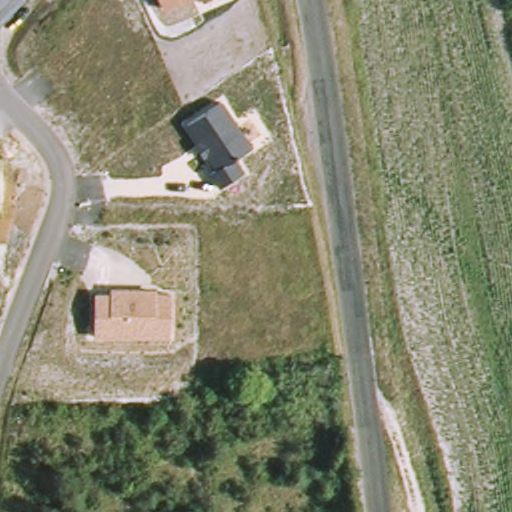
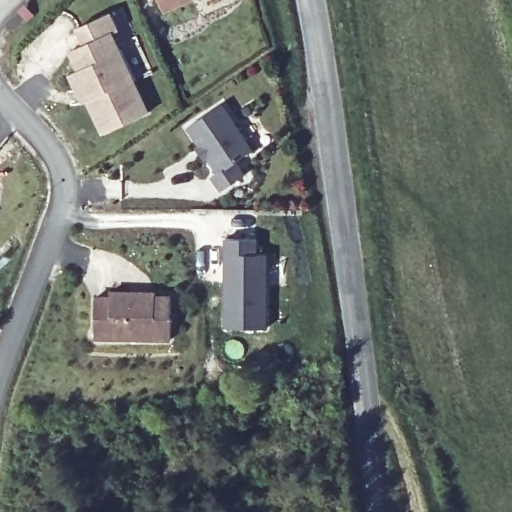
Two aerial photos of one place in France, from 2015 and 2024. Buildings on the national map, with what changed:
unchanged [(162,11),(157,0),(190,0),(162,11)]
new [(121,30),(115,33),(150,111),(101,133),(86,102),(83,105),(69,75),(77,70),(69,52),(82,45),(76,29),(112,11),(121,30)]
unchanged [(255,150),(236,162),(246,176),(221,193),(212,177),(217,173),(186,127),(222,102),(255,150)]
new [(267,328),(225,328),(226,237),(258,236),(259,255),(268,255),(267,328)]
unchanged [(111,293),(111,287),(158,287),(158,293),(174,293),(174,340),(95,340),(95,293),(111,293)]

